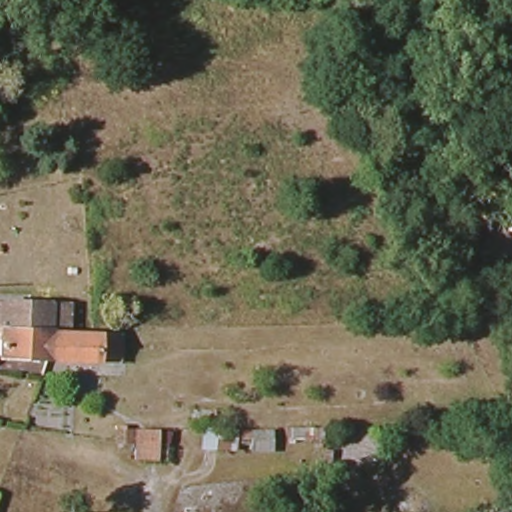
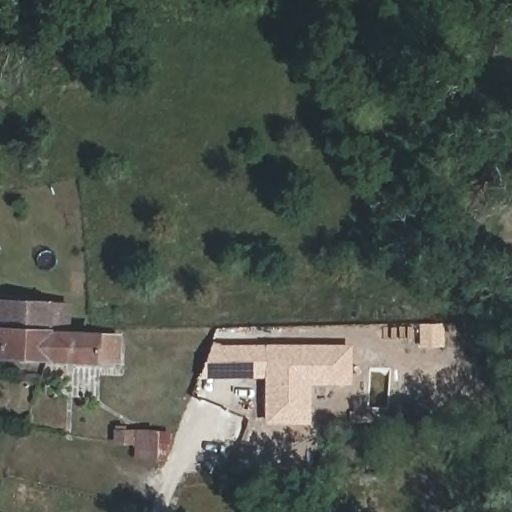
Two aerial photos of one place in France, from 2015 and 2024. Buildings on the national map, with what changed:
unchanged [(46,333),(11,333),(0,332),(0,305),(64,307),(64,332),(46,333)]
unchanged [(0,360),(0,332),(11,333),(46,333),(46,336),(46,361),(0,360)]
unchanged [(92,363),(46,361),(46,336),(94,338),(92,363)]
new [(351,384),(310,385),(311,424),(265,424),(264,379),(198,379),(212,344),(352,345),(351,384)]
demolished [(132,416),(132,418),(124,417),(124,416),(125,412),(132,412),(132,416)]
unchanged [(155,458),(137,457),(137,441),(117,439),(117,429),(117,428),(118,424),(126,424),(126,428),(126,429),(138,431),(156,432),(169,433),(167,461),(155,460),(155,458)]
unchanged [(200,427),(236,424),(236,431),(272,432),(270,454),(199,453),(200,427)]
unchanged [(323,429),(319,459),(288,458),(290,429),(323,429)]

